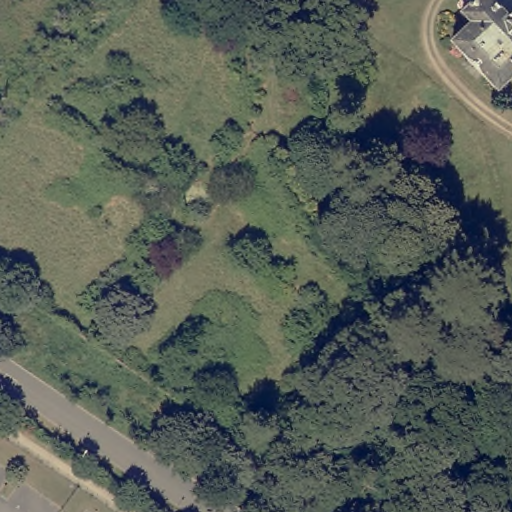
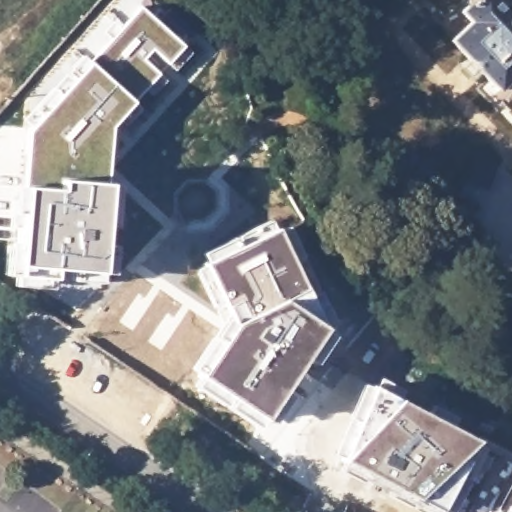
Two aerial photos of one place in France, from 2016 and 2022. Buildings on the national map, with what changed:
unchanged [(461,12),(473,0),(494,0),(507,12),(512,9),(512,80),(500,93),(449,42),(468,21),(461,12)]
new [(346,418),(328,456),(177,368),(21,285),(2,284),(10,188),(14,189),(17,158),(22,159),(25,131),(19,126),(112,18),(114,20),(127,6),(135,11),(140,7),(157,22),(172,7),(199,32),(185,47),(192,54),(177,71),(152,49),(142,61),(164,82),(126,129),(123,125),(118,130),(111,238),(205,290),(197,273),(202,262),(286,224),(335,330),(319,358),(361,382),(371,386),(373,379),(413,398),(410,404),(427,413),(431,403),(456,415),(451,426),(498,449),(497,453),(512,458),(512,512),(435,512),(412,499),(407,507),(386,496),(390,488),(365,474),(361,483),(337,471),(357,423),(346,418)]

